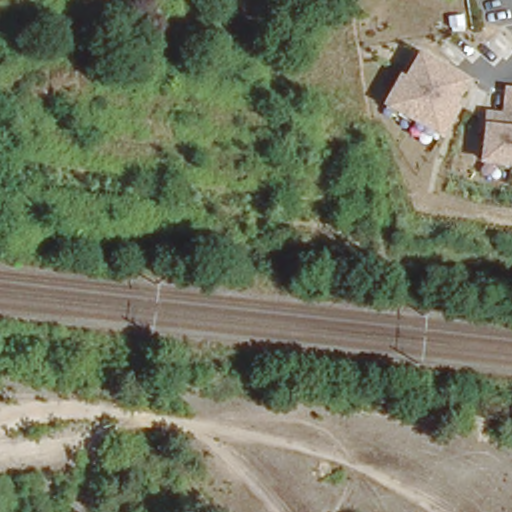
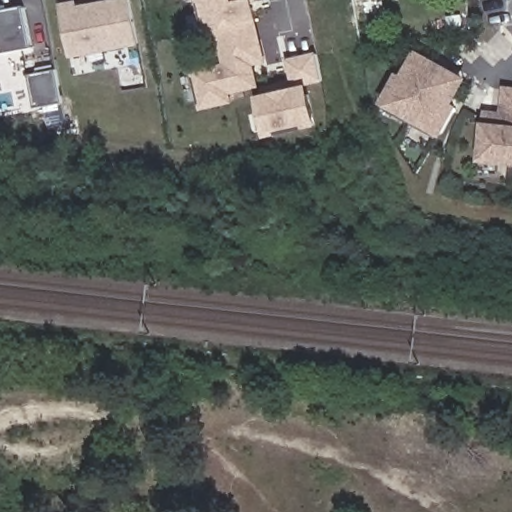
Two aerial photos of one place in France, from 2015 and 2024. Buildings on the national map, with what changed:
new [(74,0),(76,0),(77,5),(105,0),(130,0),(139,46),(68,59),(58,4),(74,0)]
new [(226,65),(221,27),(209,29),(202,0),(256,0),(251,1),(256,18),(263,61),(251,64),(256,86),(227,92),(230,101),(200,107),(194,74),(226,65)]
new [(25,6),(33,48),(1,54),(0,48),(0,11),(25,6)]
unchanged [(458,105),(463,107),(444,140),(381,107),(398,72),(405,76),(417,51),(471,80),(458,105)]
new [(288,61),(317,55),(323,80),(295,86),(288,61)]
new [(57,69),(64,104),(35,109),(29,75),(57,69)]
unchanged [(486,112),(502,114),(505,85),(512,85),(512,167),(480,163),(486,112)]
new [(307,94),(315,124),(268,135),(261,105),(307,94)]

